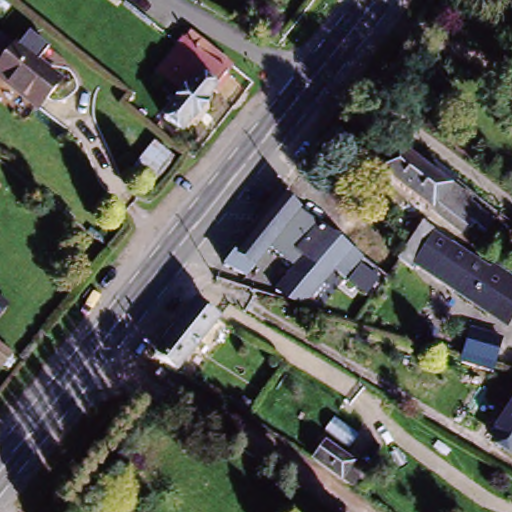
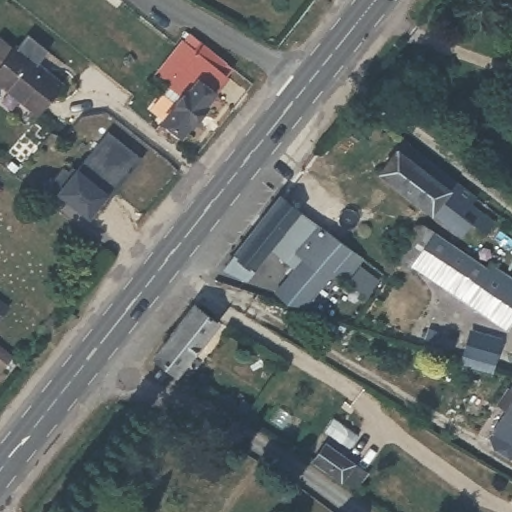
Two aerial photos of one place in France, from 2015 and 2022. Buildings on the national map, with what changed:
unchanged [(20,36),(66,73),(42,102),(0,68),(0,60),(20,36)]
unchanged [(210,109),(212,111),(197,129),(195,127),(185,139),(166,126),(185,101),(158,80),(170,66),(188,43),(200,52),(205,45),(231,65),(226,73),(233,79),(210,109)]
new [(63,164),(68,169),(72,164),(76,168),(108,129),(142,157),(115,191),(110,187),(88,214),(49,182),(63,164)]
unchanged [(471,204),(494,222),(485,234),(470,222),(460,235),(380,172),(397,150),(405,156),(411,146),(445,172),(456,181),(453,185),(473,200),(471,204)]
unchanged [(280,192),(296,205),(300,208),(305,212),(315,218),(326,225),(302,253),(285,240),(281,244),(273,239),(245,273),(224,262),(280,192)]
unchanged [(326,225),(351,245),(348,249),(384,275),(370,293),(333,266),(305,301),(274,288),(302,253),(326,225)]
unchanged [(438,283),(420,270),(416,275),(405,267),(403,265),(415,246),(414,240),(419,233),(425,231),(440,240),(457,251),(458,250),(492,272),(471,305),(438,283)]
unchanged [(512,281),(512,324),(508,329),(471,305),(492,272),(500,272),(512,281)]
unchanged [(153,351),(183,312),(195,299),(216,316),(175,368),(155,354),(153,351)]
unchanged [(8,310),(0,321),(0,304),(8,310)]
unchanged [(10,360),(1,371),(0,370),(0,352),(10,360)]
unchanged [(508,401),(512,396),(512,454),(485,435),(508,401)]
unchanged [(317,462),(330,445),(356,464),(369,474),(357,490),(344,481),(317,462)]

